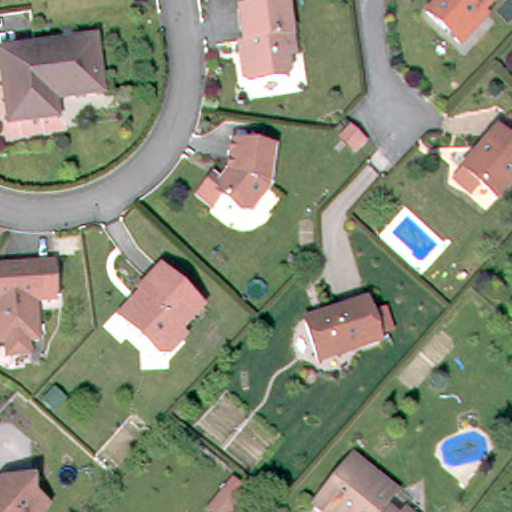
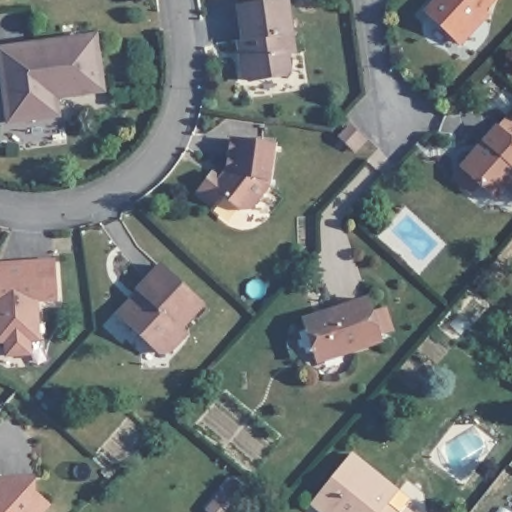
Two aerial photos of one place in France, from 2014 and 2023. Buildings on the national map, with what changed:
unchanged [(487,14),(460,43),(427,12),(439,0),(493,0),(483,11),(487,14)]
unchanged [(245,42),(240,8),(287,1),(295,53),(287,54),(290,70),(285,76),(250,81),(245,77),(242,63),(240,42),(245,42)]
unchanged [(67,121),(6,130),(0,97),(0,48),(108,26),(116,92),(67,95),(67,121)]
unchanged [(475,189),(466,200),(447,183),(457,173),(492,132),(495,135),(507,122),(512,127),(512,180),(491,203),(475,189)]
unchanged [(356,152),(353,149),(340,137),(350,125),(364,137),(367,140),(356,152)]
unchanged [(270,181),(270,187),(251,210),(241,211),(221,195),(213,206),(197,193),(212,173),(222,181),(230,172),(227,170),(232,139),(275,145),(270,181)]
unchanged [(40,335),(30,335),(30,349),(7,351),(7,337),(0,337),(0,260),(1,259),(2,264),(12,263),(11,259),(55,256),(57,294),(37,295),(40,335)]
unchanged [(204,304),(182,329),(186,333),(167,353),(159,353),(119,316),(132,301),(135,303),(142,294),(139,291),(162,265),(204,304)]
unchanged [(373,313),(386,309),(392,329),(380,334),(382,341),(317,363),(305,325),(304,320),(328,312),(368,299),(373,313)]
unchanged [(398,492),(386,507),(392,512),(322,512),(312,503),(352,454),(398,492)]
unchanged [(34,512),(0,512),(0,474),(4,470),(35,468),(35,484),(48,496),(34,512)]
unchanged [(404,508),(408,512),(401,512),(404,508)]

